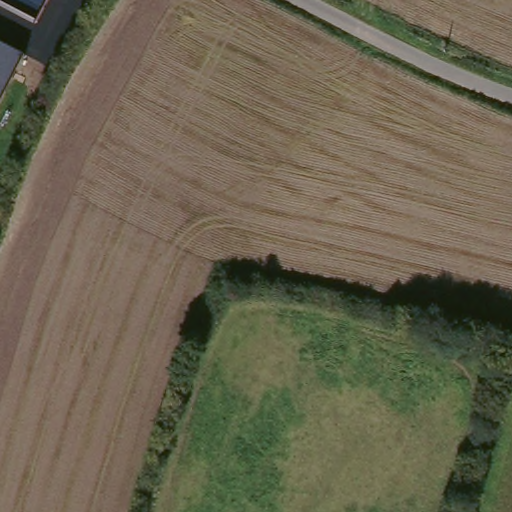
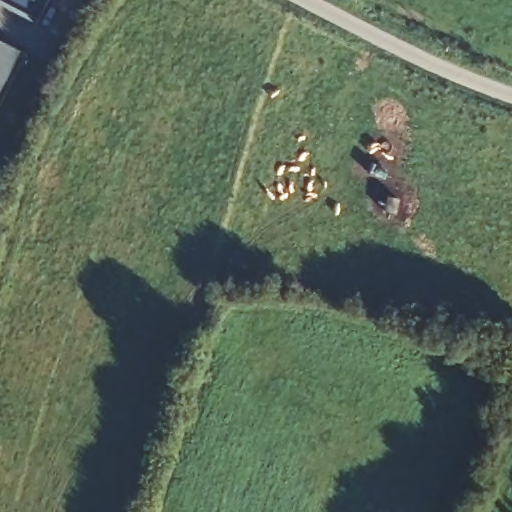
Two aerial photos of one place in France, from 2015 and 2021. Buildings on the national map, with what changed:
unchanged [(0,2),(0,0),(49,0),(37,21),(0,2)]
unchanged [(0,107),(0,42),(27,55),(0,107)]

